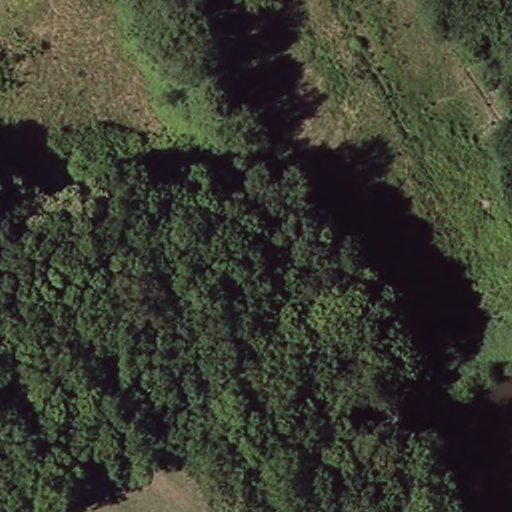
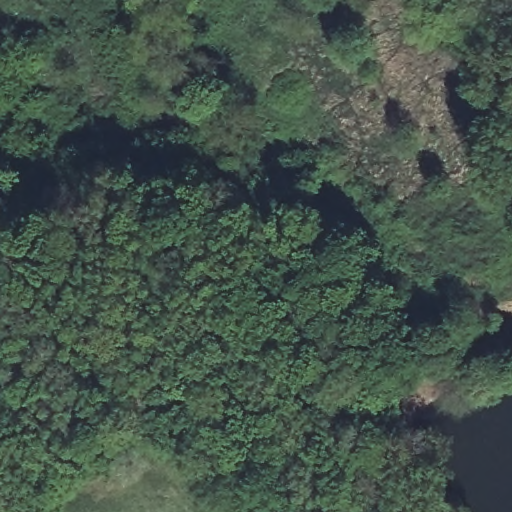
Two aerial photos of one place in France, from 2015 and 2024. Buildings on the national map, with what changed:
[]

